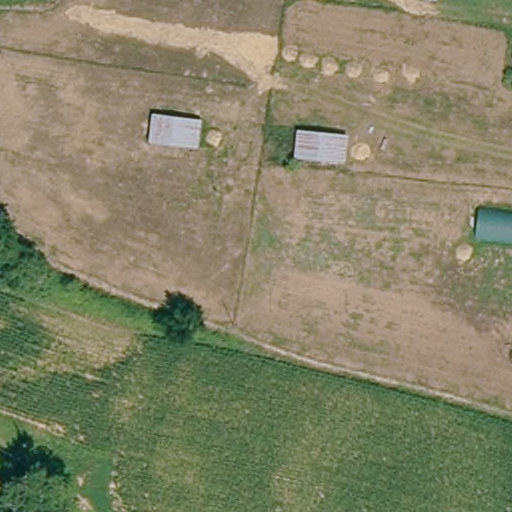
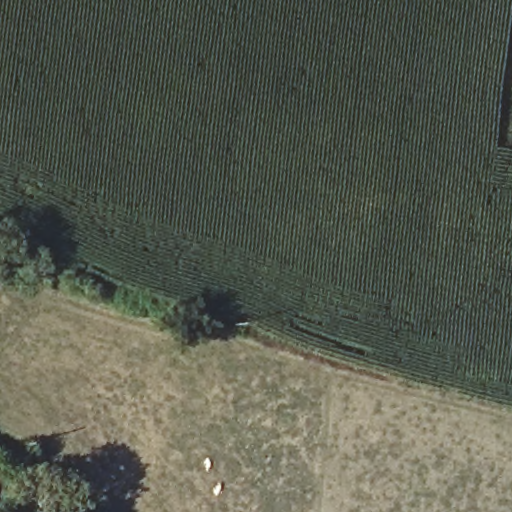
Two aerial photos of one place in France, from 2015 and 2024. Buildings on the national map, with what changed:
demolished [(151,143),(154,115),(201,119),(199,150),(151,143)]
demolished [(295,159),(298,130),(347,136),(346,165),(295,159)]
demolished [(476,237),(481,213),(512,216),(512,242),(476,237)]

